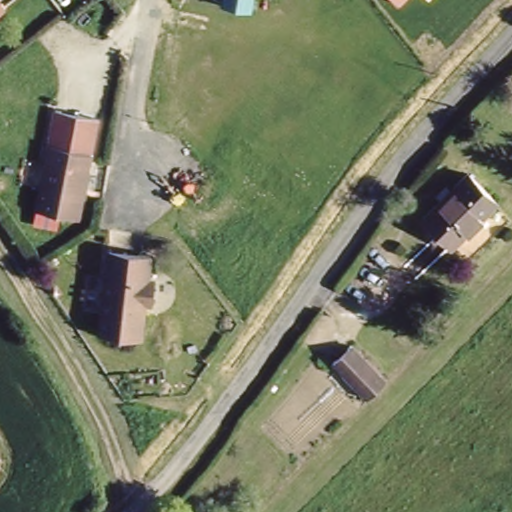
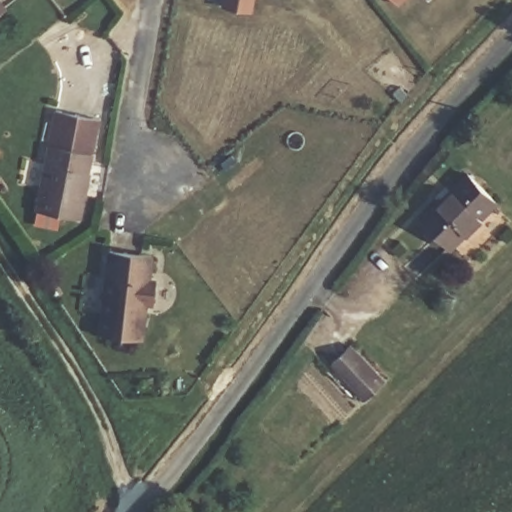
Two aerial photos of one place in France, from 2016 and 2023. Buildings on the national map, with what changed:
unchanged [(218,0),(253,0),(251,11),(217,4),(218,0)]
unchanged [(399,2),(396,0),(401,0),(399,2)]
unchanged [(0,12),(0,8),(2,10),(0,12)]
unchanged [(44,157),(55,108),(99,117),(88,164),(44,157)]
unchanged [(80,215),(35,208),(44,157),(88,164),(80,215)]
unchanged [(464,174),(492,203),(451,246),(421,218),(464,174)]
unchanged [(147,280),(154,281),(150,305),(143,303),(137,339),(95,332),(108,249),(150,256),(147,280)]
unchanged [(381,380),(365,398),(331,365),(348,347),(381,380)]

